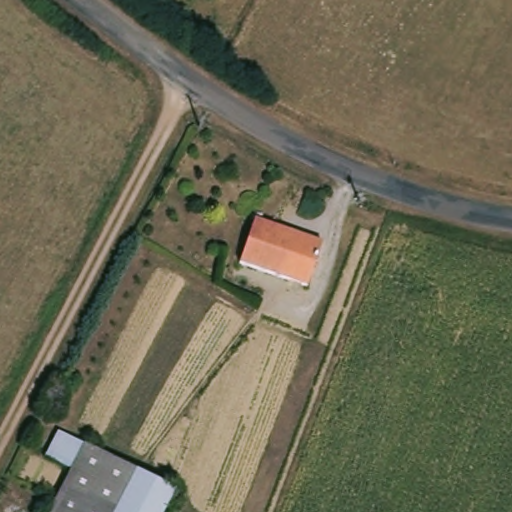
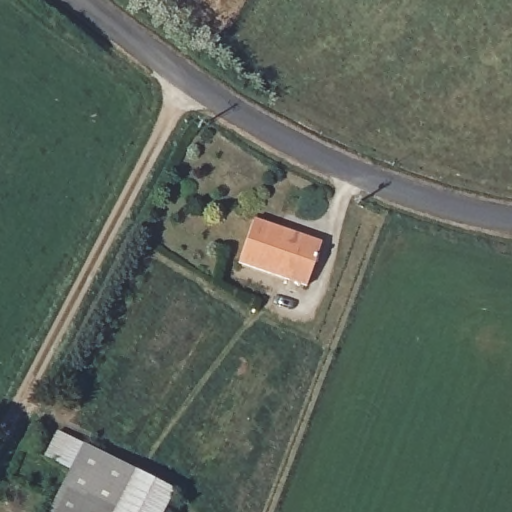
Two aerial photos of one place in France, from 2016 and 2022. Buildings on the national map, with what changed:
unchanged [(254,221),(323,243),(308,287),(240,265),(254,221)]
unchanged [(53,512),(74,469),(50,458),(61,431),(179,492),(169,512),(53,512)]

